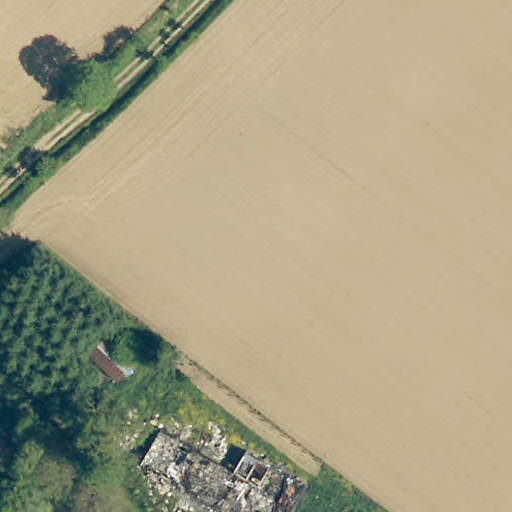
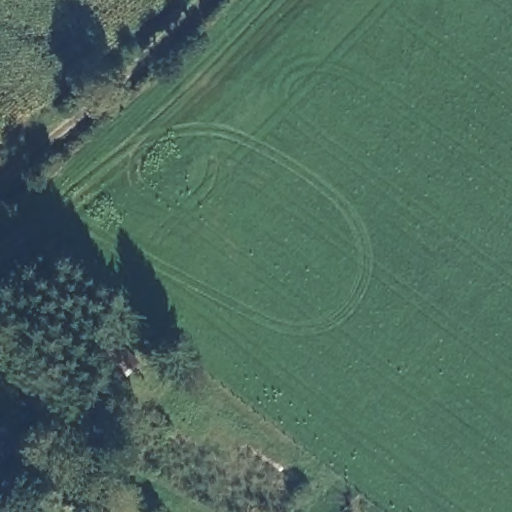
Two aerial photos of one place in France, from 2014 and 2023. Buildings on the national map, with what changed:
unchanged [(118,380),(91,356),(107,338),(133,362),(118,380)]
unchanged [(11,450),(0,465),(0,441),(11,450)]

